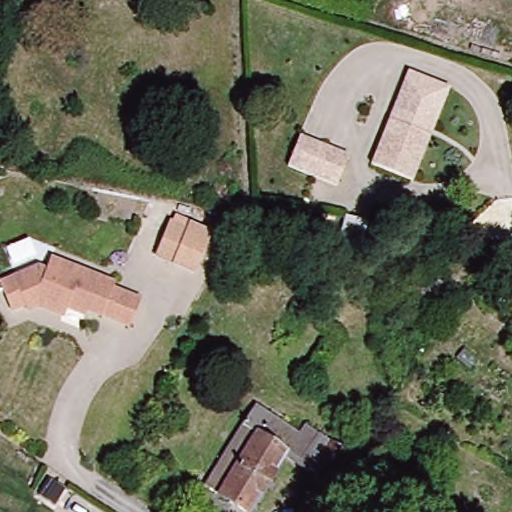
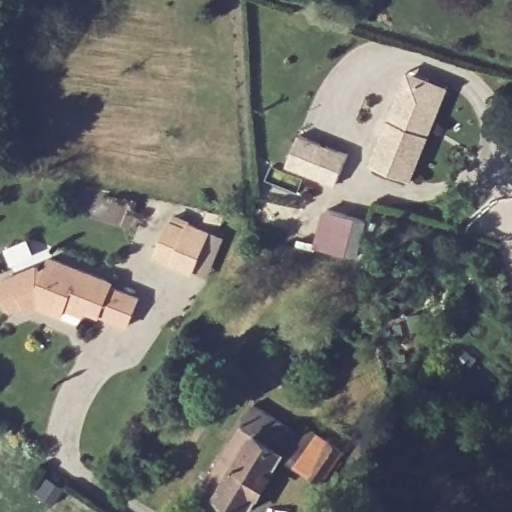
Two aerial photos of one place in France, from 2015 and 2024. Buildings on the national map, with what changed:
unchanged [(369,160),(409,80),(413,71),(453,91),(430,137),(408,181),(369,160)]
unchanged [(332,189),(310,179),(310,177),(287,167),(301,136),(347,160),(332,189)]
new [(366,221),(356,257),(313,245),(323,209),(366,221)]
unchanged [(194,273),(156,260),(167,226),(186,232),(187,226),(207,233),(194,273)]
unchanged [(25,315),(24,308),(8,315),(0,298),(0,285),(35,269),(42,272),(47,261),(111,283),(109,290),(137,298),(127,327),(82,312),(82,317),(62,310),(61,319),(34,310),(25,315)]
unchanged [(282,456),(248,512),(243,512),(204,488),(249,410),(287,431),(293,422),(338,448),(319,477),(282,456)]

